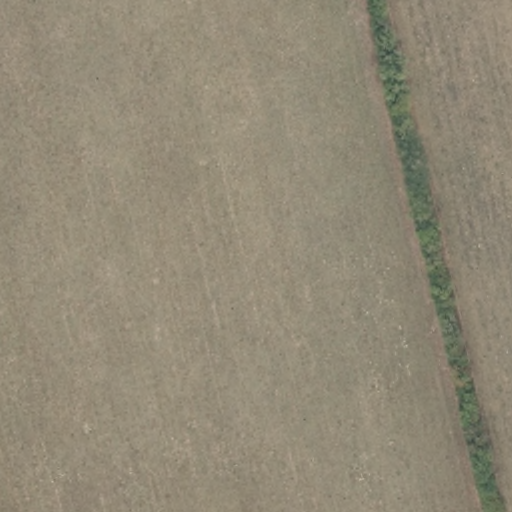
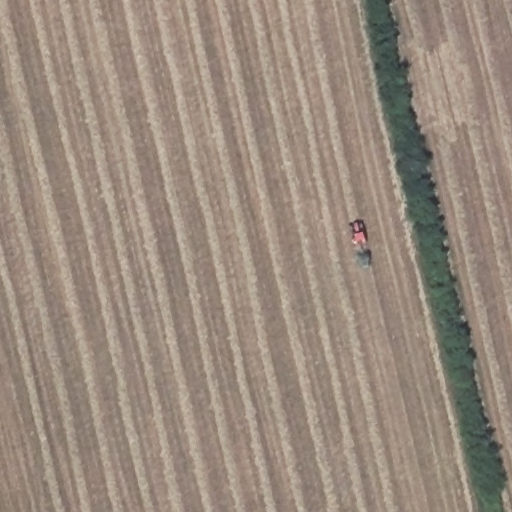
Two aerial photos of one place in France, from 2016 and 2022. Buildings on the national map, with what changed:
[]

